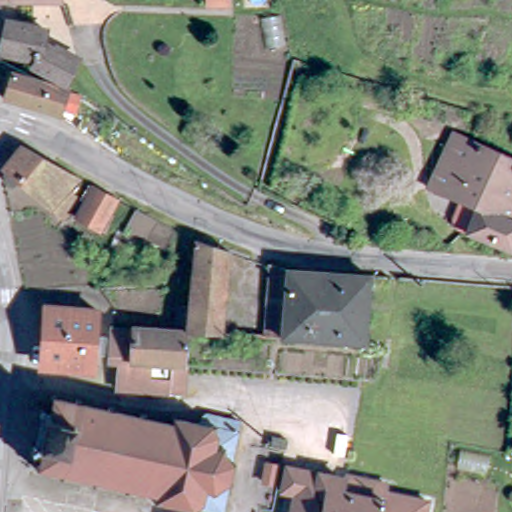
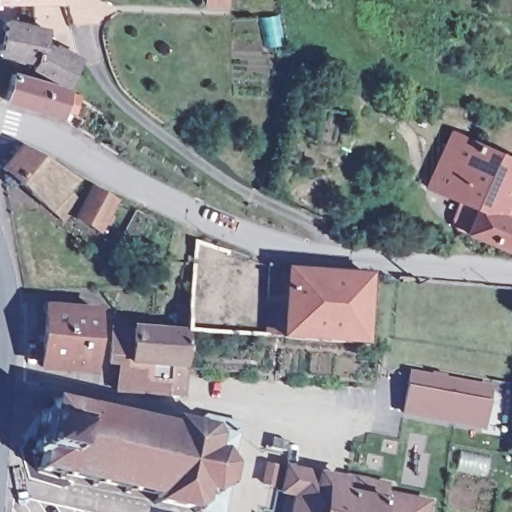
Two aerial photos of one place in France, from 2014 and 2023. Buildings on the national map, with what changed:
unchanged [(0,2),(0,0),(42,0),(33,1),(0,2)]
unchanged [(197,11),(197,0),(213,0),(213,11),(197,11)]
unchanged [(0,49),(0,15),(38,24),(39,28),(39,31),(38,38),(33,56),(0,49)]
unchanged [(29,66),(33,56),(38,38),(68,54),(71,56),(59,81),(53,78),(29,66)]
unchanged [(60,86),(69,88),(67,101),(57,99),(55,110),(46,105),(0,91),(0,85),(4,68),(53,78),(59,81),(60,83),(60,86)]
unchanged [(451,227),(449,221),(456,202),(424,188),(432,171),(452,131),(512,157),(512,245),(509,252),(489,243),(464,234),(454,231),(451,227)]
unchanged [(76,194),(60,214),(12,181),(8,186),(0,181),(0,160),(13,145),(70,171),(63,182),(76,194)]
unchanged [(96,228),(73,216),(88,185),(113,196),(96,228)]
unchanged [(190,239),(224,252),(217,338),(184,336),(186,307),(190,239)]
unchanged [(364,274),(358,340),(273,336),(277,288),(268,287),(270,266),(278,269),(364,274)]
unchanged [(35,365),(41,304),(65,305),(66,303),(91,305),(85,367),(35,365)]
unchanged [(115,391),(117,361),(106,360),(109,333),(129,333),(129,331),(173,332),(176,307),(186,307),(184,336),(180,396),(115,391)]
new [(493,385),(485,429),(404,413),(411,371),(432,375),(432,371),(448,374),(448,377),(493,385)]
unchanged [(91,477),(89,480),(84,479),(83,476),(56,470),(55,472),(53,473),(50,473),(49,468),(33,465),(29,467),(26,464),(31,459),(34,448),(26,447),(23,449),(19,445),(28,439),(33,415),(29,409),(33,406),(39,411),(42,410),(44,398),(42,395),(45,392),(48,396),(66,399),(67,396),(75,398),(74,402),(100,406),(101,404),(110,405),(109,408),(136,414),(137,411),(144,413),(143,416),(168,420),(168,419),(166,413),(169,411),(173,416),(196,421),(198,417),(201,414),(202,414),(236,420),(231,444),(233,447),(231,452),(229,457),(229,460),(226,460),(223,475),(226,478),(218,511),(196,505),(193,507),(189,507),(187,505),(186,504),(152,497),(151,495),(151,491),(151,490),(125,484),(123,487),(118,486),(119,483),(91,477)]
unchanged [(261,453),(263,443),(278,445),(277,456),(261,453)]
unchanged [(384,512),(287,512),(291,496),(276,491),(281,468),(283,468),(336,481),(338,476),(383,487),(382,492),(387,493),(384,512)]
unchanged [(431,503),(428,512),(384,512),(387,493),(431,503)]

